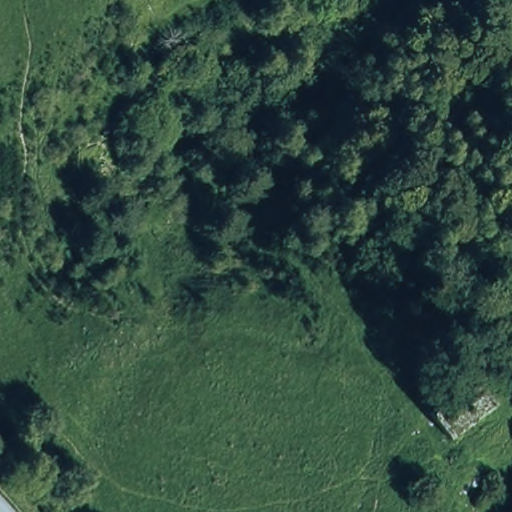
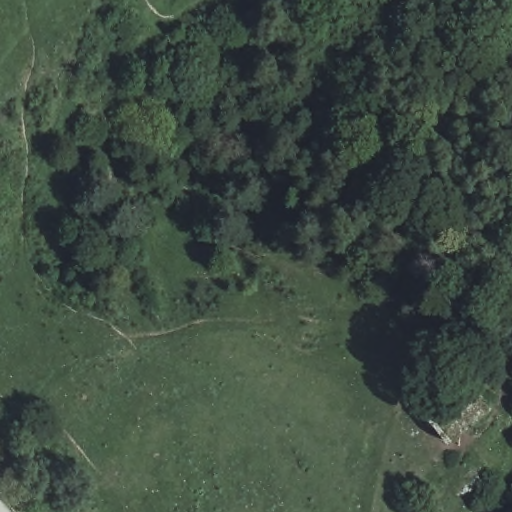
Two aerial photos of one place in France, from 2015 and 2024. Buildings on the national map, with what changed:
unchanged [(453,447),(429,415),(476,378),(498,409),(453,447)]

